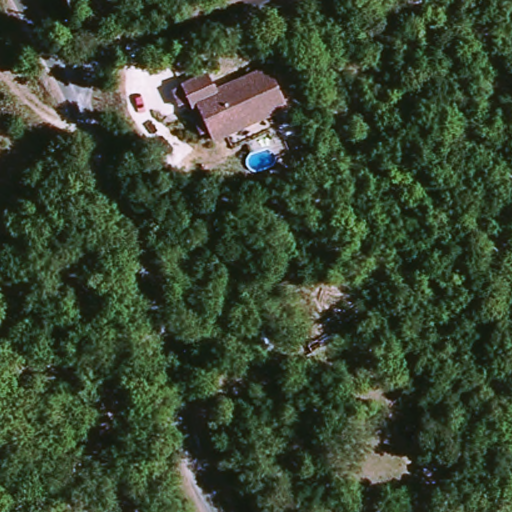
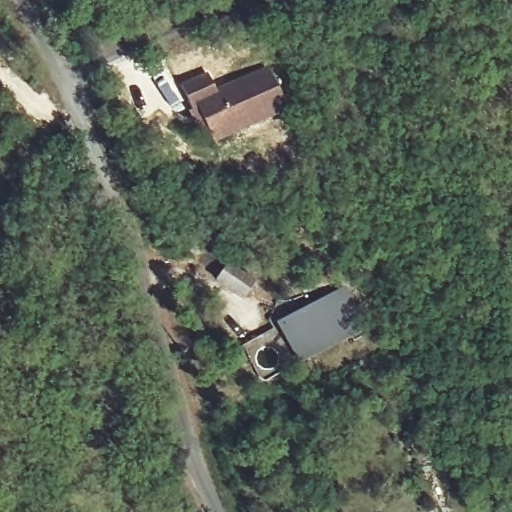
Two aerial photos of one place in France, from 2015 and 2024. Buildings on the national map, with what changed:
unchanged [(287,107),(226,136),(214,142),(197,107),(190,111),(178,83),(209,70),(218,93),(269,69),(287,107)]
new [(225,265),(250,283),(240,297),(215,280),(225,265)]
new [(341,288),(361,326),(295,362),(274,324),(341,288)]

